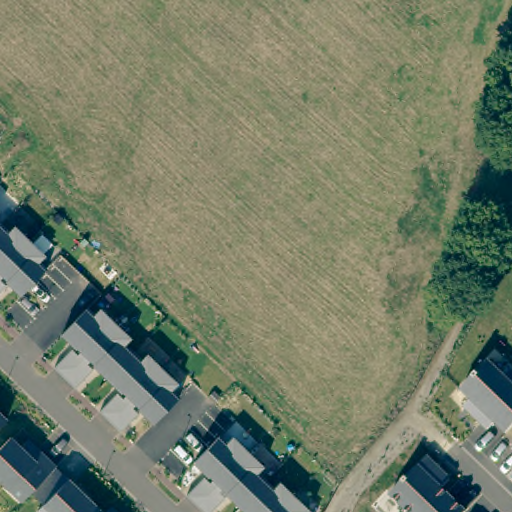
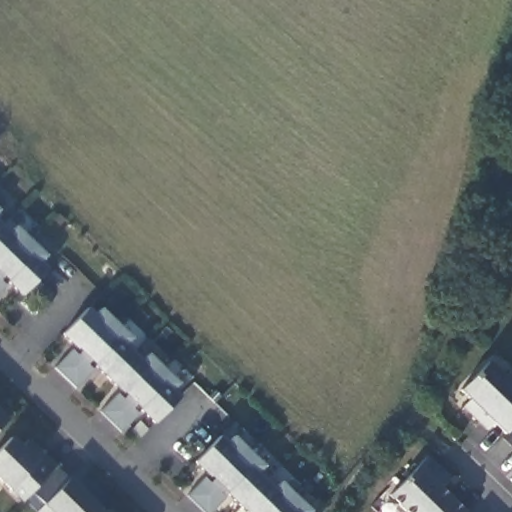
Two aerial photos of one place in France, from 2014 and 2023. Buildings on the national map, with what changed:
unchanged [(14,227),(43,257),(38,262),(46,269),(20,296),(7,287),(0,295),(0,226),(8,233),(14,227)]
unchanged [(139,413),(121,433),(99,412),(116,390),(94,371),(75,389),(54,369),(72,348),(62,338),(86,309),(94,316),(100,309),(130,339),(125,344),(141,360),(146,354),(178,384),(171,391),(179,398),(155,422),(139,413)]
unchanged [(460,393),(488,362),(505,378),(512,372),(512,429),(504,438),(460,393)]
unchanged [(0,426),(0,414),(5,420),(0,426)]
unchanged [(214,512),(204,512),(186,495),(206,474),(193,464),(218,435),(226,444),(233,438),(262,467),(257,473),(273,488),(279,480),(309,511),(309,512),(241,512),(228,499),(214,512)]
unchanged [(43,504),(32,493),(22,504),(9,490),(0,481),(0,449),(11,437),(23,447),(29,440),(58,465),(56,467),(68,478),(102,512),(39,512),(37,510),(43,504)]
unchanged [(428,455),(449,477),(439,489),(464,512),(403,512),(389,498),(428,455)]
unchanged [(119,512),(108,512),(113,507),(119,512)]

